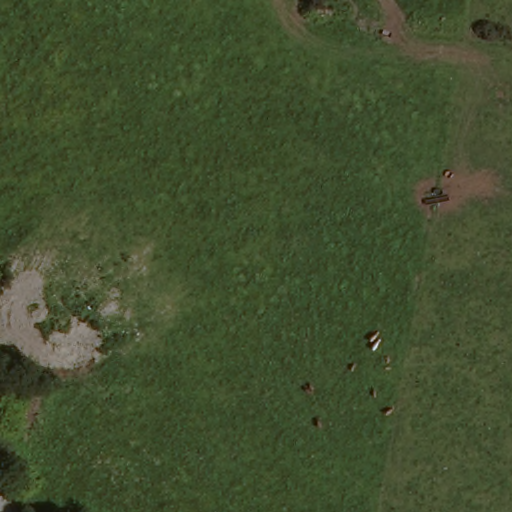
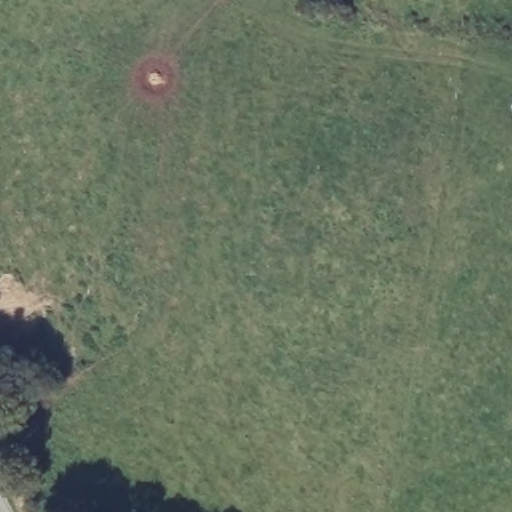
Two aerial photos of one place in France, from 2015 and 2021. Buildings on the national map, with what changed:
[]

